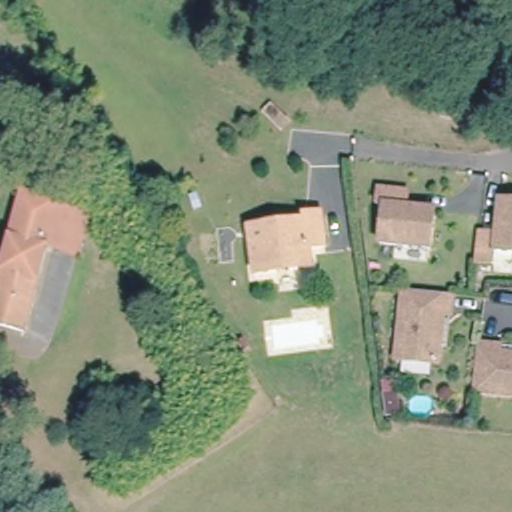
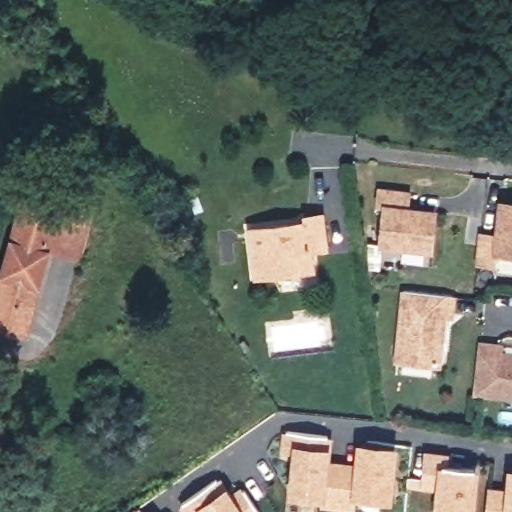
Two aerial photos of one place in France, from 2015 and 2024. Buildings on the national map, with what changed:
demolished [(410,111),(407,131),(390,130),(386,113),(410,111)]
unchanged [(0,323),(0,258),(17,192),(79,206),(74,226),(70,245),(44,238),(22,327),(0,323)]
unchanged [(437,247),(385,244),(387,208),(382,207),(382,192),(417,194),(416,209),(437,212),(437,247)]
unchanged [(496,266),(477,265),(480,232),(498,233),(502,203),(512,204),(512,252),(497,251),(496,266)]
unchanged [(310,249),(311,271),(257,276),(252,228),(308,223),(307,217),(325,216),(327,250),(310,249)]
unchanged [(435,347),(433,365),(396,362),(403,292),(452,297),(450,319),(447,347),(435,347)]
unchanged [(487,348),(506,349),(512,349),(512,398),(484,395),(487,348)]
new [(282,432),(331,436),(329,458),(355,461),(356,443),(397,446),(392,501),(355,498),(355,509),(319,506),(319,500),(287,496),(292,453),(280,452),(282,432)]
new [(448,466),(478,470),(474,512),(433,512),(435,490),(420,488),(423,449),(449,452),(448,466)]
new [(506,467),(512,468),(512,512),(485,512),(488,487),(505,487),(506,467)]
new [(177,508),(219,475),(230,490),(239,484),(261,512),(180,512),(177,508)]
new [(139,506),(143,512),(131,512),(139,506)]
new [(152,510),(153,512),(150,512),(152,510)]

